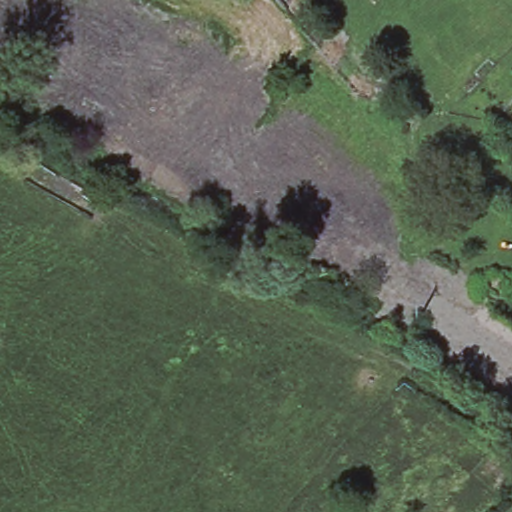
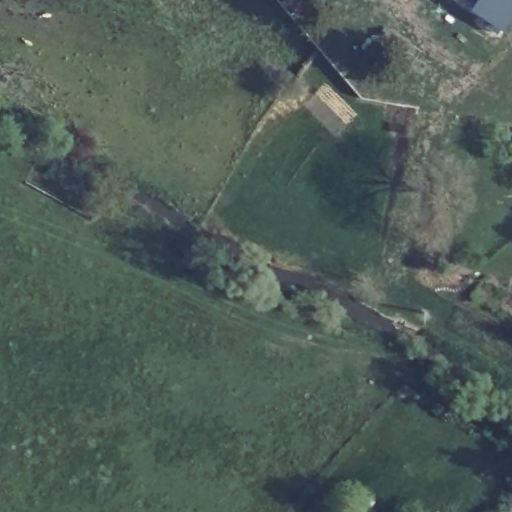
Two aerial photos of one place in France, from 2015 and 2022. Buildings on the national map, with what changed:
new [(506,35),(459,0),(512,0),(512,25),(506,35)]

